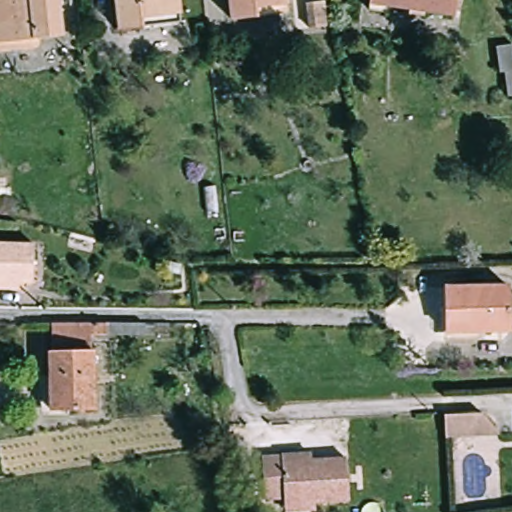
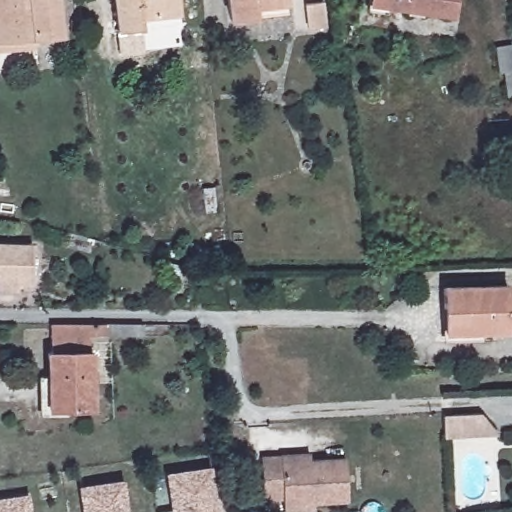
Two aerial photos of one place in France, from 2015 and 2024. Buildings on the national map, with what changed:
unchanged [(0,37),(0,0),(56,0),(59,31),(0,37)]
unchanged [(176,15),(136,19),(136,29),(118,30),(115,0),(174,0),(176,15)]
unchanged [(257,20),(229,25),(225,0),(287,0),(288,0),(290,15),(257,20)]
unchanged [(459,12),(371,12),(372,0),(459,0),(459,12)]
unchanged [(324,29),(309,30),(305,3),(320,1),(324,29)]
unchanged [(352,61),(345,61),(343,47),(351,46),(352,61)]
unchanged [(510,82),(512,82),(512,93),(510,82)]
unchanged [(213,186),(216,212),(203,213),(201,187),(213,186)]
unchanged [(0,198),(0,188),(10,187),(11,196),(0,198)]
unchanged [(0,247),(33,249),(31,284),(18,283),(16,296),(0,295),(0,247)]
unchanged [(168,261),(180,265),(178,275),(165,272),(168,261)]
unchanged [(444,313),(444,290),(507,289),(507,337),(455,337),(445,337),(444,313)]
unchanged [(146,343),(90,340),(91,413),(50,414),(50,321),(148,326),(146,343)]
unchanged [(483,410),(500,430),(447,434),(445,413),(483,410)]
unchanged [(288,502),(268,503),(265,461),(284,460),(314,457),(314,463),(348,460),(351,503),(318,505),(318,512),(288,512),(288,508),(288,502)]
new [(156,512),(156,511),(171,509),(166,472),(213,465),(219,512),(156,512)]
new [(82,512),(78,485),(125,480),(129,512),(82,512)]
new [(33,512),(0,512),(0,497),(30,493),(33,512)]

